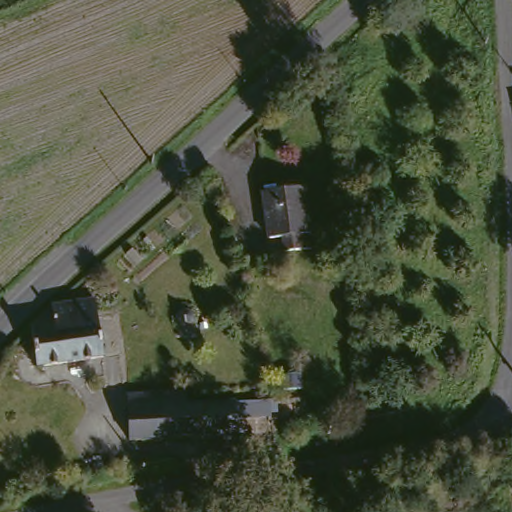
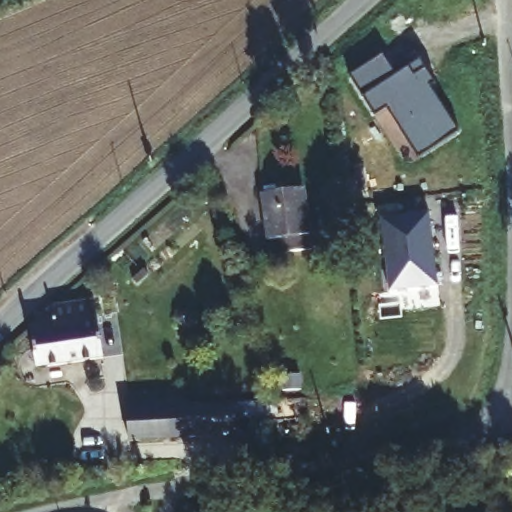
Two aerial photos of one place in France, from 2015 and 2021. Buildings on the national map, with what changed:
new [(375,115),(349,74),(382,53),(396,74),(409,66),(419,59),(424,67),(436,83),(431,86),(458,130),(418,156),(399,127),(386,107),(375,115)]
unchanged [(308,187),(315,250),(286,254),(284,239),(272,241),(266,193),(308,187)]
new [(430,231),(434,257),(437,287),(389,292),(380,218),(428,213),(430,231)]
unchanged [(107,354),(41,364),(35,323),(54,306),(59,301),(99,296),(107,354)]
unchanged [(192,403),(209,402),(240,402),(277,399),(279,417),(239,420),(239,422),(239,433),(210,435),(137,442),(134,394),(191,392),(192,403)]

